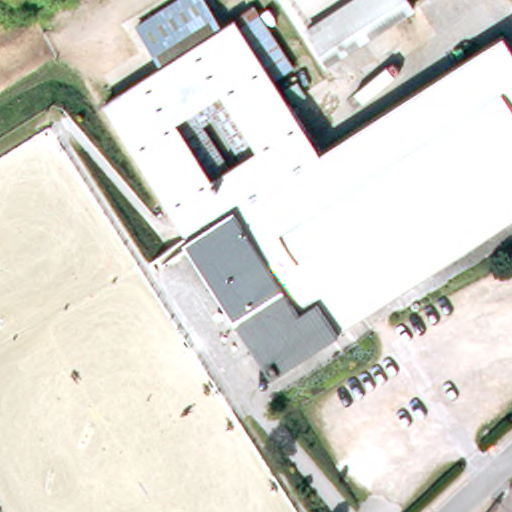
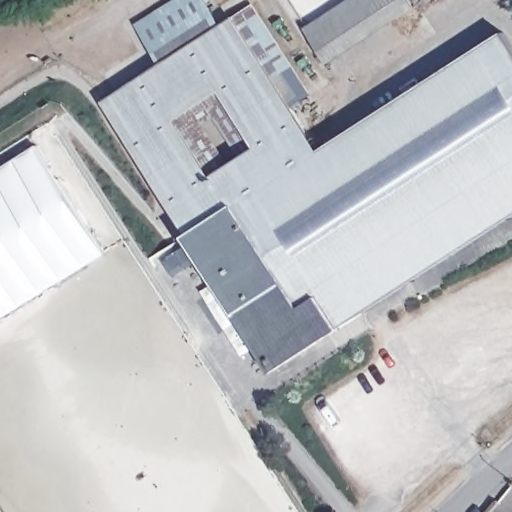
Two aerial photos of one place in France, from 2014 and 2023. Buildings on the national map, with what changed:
unchanged [(166,0),(207,0),(223,24),(160,65),(133,22),(166,0)]
unchanged [(328,63),(305,30),(350,0),(410,0),(417,9),(328,63)]
unchanged [(301,92),(285,102),(231,19),(247,8),(301,92)]
unchanged [(502,34),(512,50),(512,214),(272,370),(101,103),(160,65),(223,24),(231,19),(285,102),(317,153),(502,34)]
new [(39,146),(107,253),(0,320),(0,170),(39,146)]

